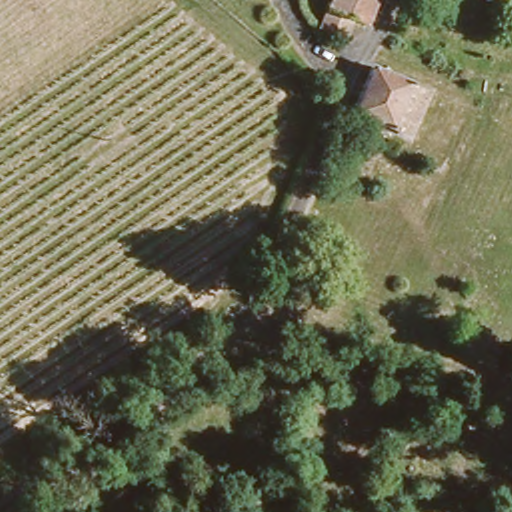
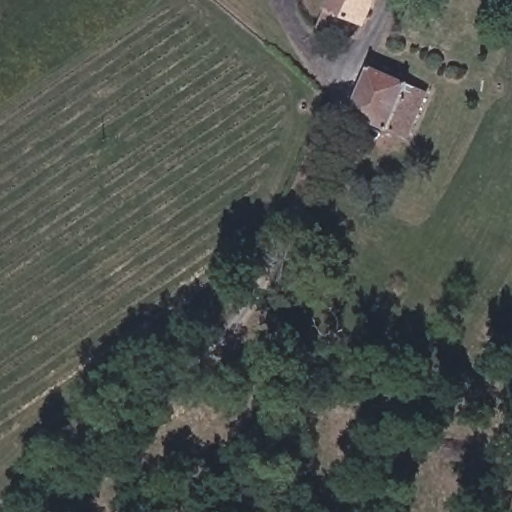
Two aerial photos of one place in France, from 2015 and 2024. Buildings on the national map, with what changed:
unchanged [(317,0),(372,0),(364,17),(348,10),(337,29),(310,15),(317,0)]
unchanged [(384,124),(347,106),(370,60),(406,78),(386,119),(384,124)]
unchanged [(426,88),(407,130),(386,119),(406,78),(426,88)]

